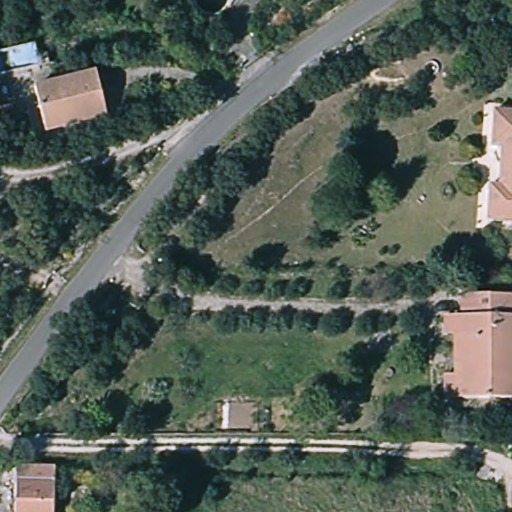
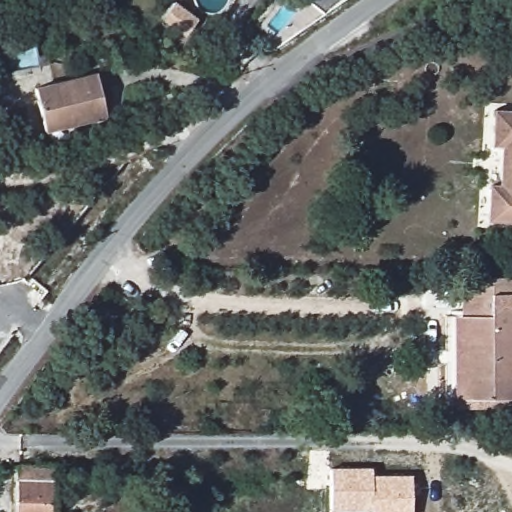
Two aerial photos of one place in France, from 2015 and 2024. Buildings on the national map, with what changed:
unchanged [(40,90),(100,80),(106,121),(47,131),(40,90)]
unchanged [(493,224),(496,191),(506,192),(511,144),(502,143),(506,112),(512,112),(512,226),(493,224)]
unchanged [(467,297),(512,298),(512,403),(463,401),(467,297)]
new [(373,512),(373,510),(330,509),(331,467),(371,467),(372,473),(411,475),(411,512),(373,512)]
unchanged [(21,503),(21,470),(56,471),(55,503),(21,503)]
unchanged [(21,512),(21,503),(55,503),(55,512),(21,512)]

